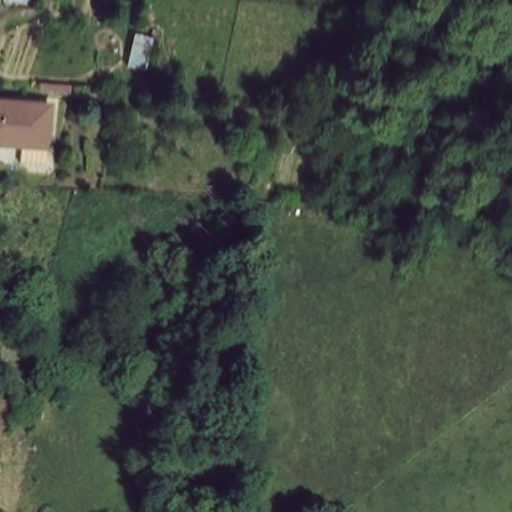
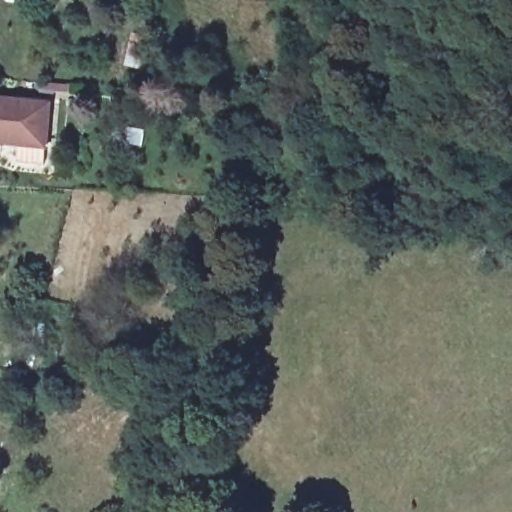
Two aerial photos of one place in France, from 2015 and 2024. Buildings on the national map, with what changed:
unchanged [(51,101),(50,144),(0,142),(0,100),(51,101)]

